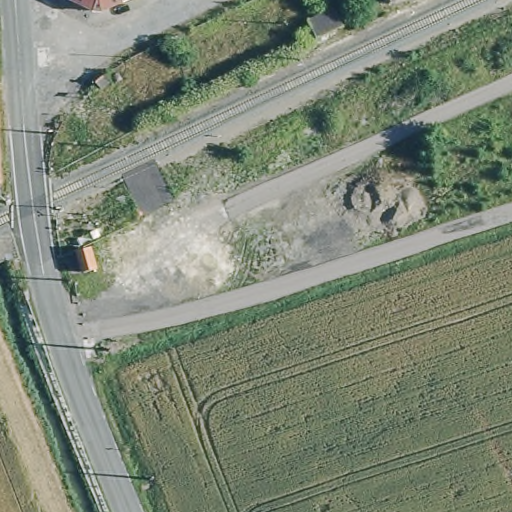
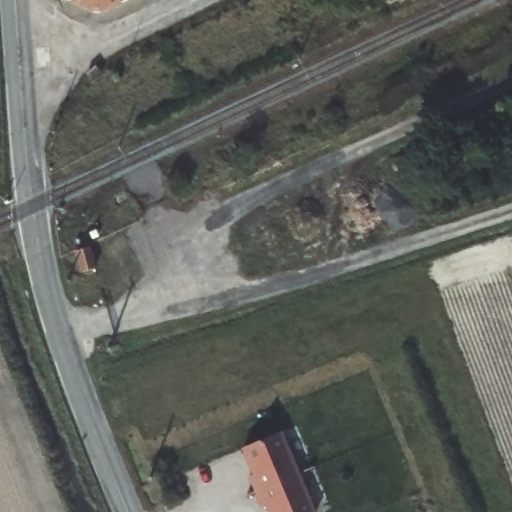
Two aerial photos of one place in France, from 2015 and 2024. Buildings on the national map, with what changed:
unchanged [(89,14),(68,0),(125,0),(97,12),(89,14)]
unchanged [(388,0),(397,0),(390,4),(388,0)]
demolished [(299,27),(327,14),(336,32),(307,46),(299,27)]
demolished [(0,129),(4,193),(0,194),(0,129)]
unchanged [(110,267),(98,271),(94,258),(92,258),(91,251),(90,250),(94,249),(104,246),(110,267)]
new [(280,433),(313,512),(270,512),(267,505),(262,507),(250,477),(255,475),(244,448),(280,433)]

